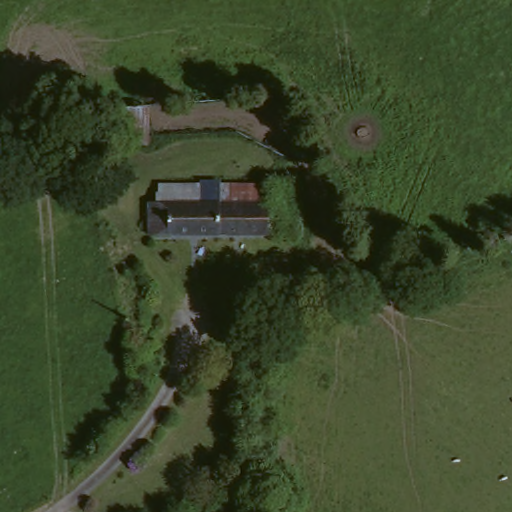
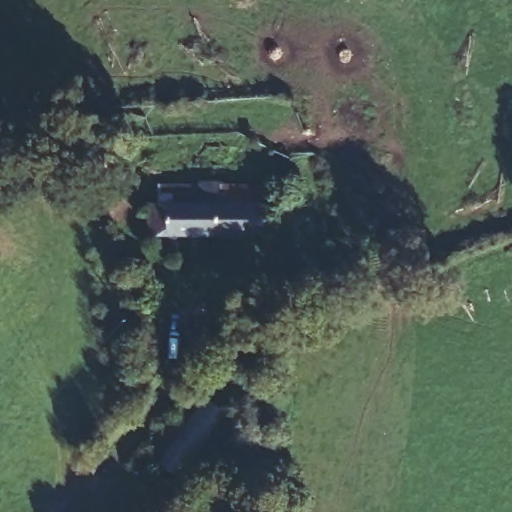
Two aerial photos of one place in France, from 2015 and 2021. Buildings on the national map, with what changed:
unchanged [(248,209),(264,209),(266,236),(154,237),(154,212),(166,212),(166,187),(244,187),(248,209)]

